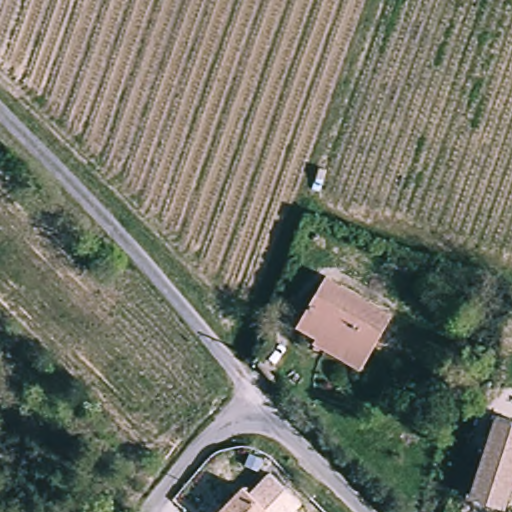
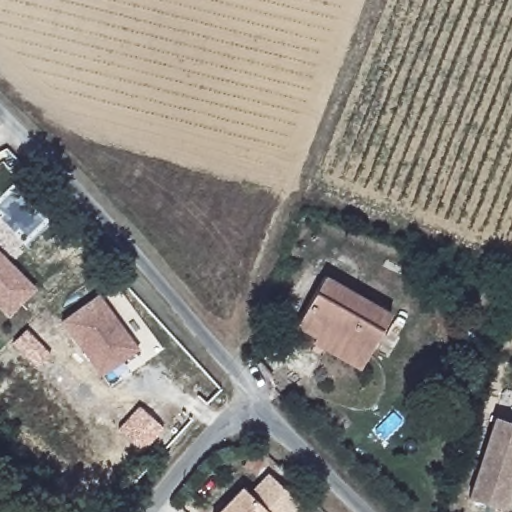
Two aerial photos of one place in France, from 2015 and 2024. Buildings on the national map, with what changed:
new [(8,314),(0,306),(0,255),(33,288),(8,314)]
unchanged [(315,339),(317,335),(298,323),(326,273),(393,311),(369,354),(362,366),(315,339)]
new [(102,376),(61,320),(99,293),(140,348),(102,376)]
demolished [(505,342),(512,322),(512,344),(505,342)]
unchanged [(512,425),(512,486),(504,511),(469,498),(497,419),(512,425)]
unchanged [(271,473),(304,501),(294,512),(268,512),(247,493),(271,473)]
unchanged [(240,487),(268,512),(215,512),(240,487)]

